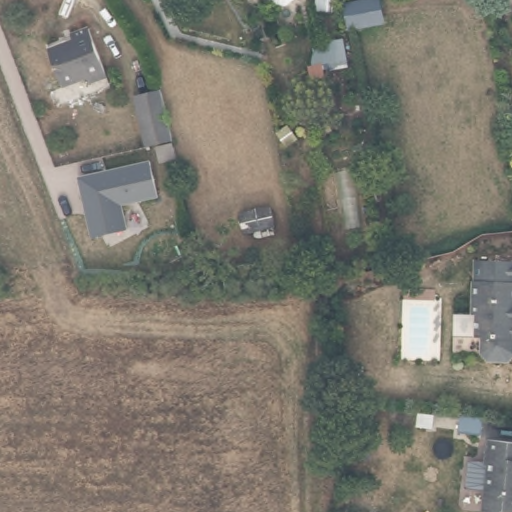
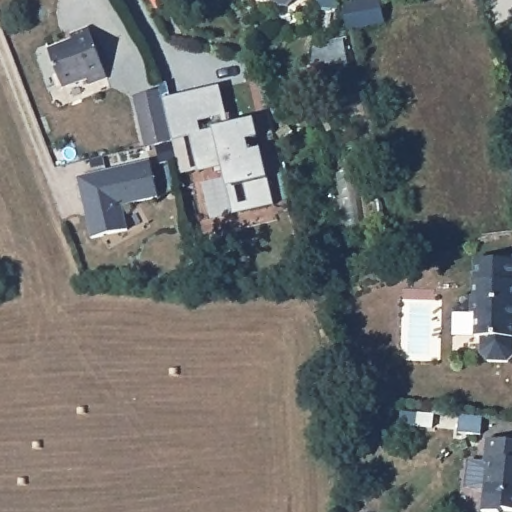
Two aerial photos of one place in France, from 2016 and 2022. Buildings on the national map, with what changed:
unchanged [(267,0),(293,0),(292,9),(267,9),(267,0)]
unchanged [(336,11),(316,10),(316,0),(337,0),(337,7),(336,11)]
unchanged [(337,7),(375,0),(381,0),(387,25),(370,28),(339,34),(336,11),(337,7)]
unchanged [(102,74),(84,81),(81,74),(58,83),(46,48),(71,40),(70,31),(86,28),(102,74)]
unchanged [(142,107),(138,87),(165,83),(168,102),(173,135),(147,140),(142,107)]
new [(219,85),(226,124),(254,119),(266,179),(264,179),(271,204),(232,214),(219,168),(178,175),(169,136),(173,135),(168,102),(167,97),(219,85)]
unchanged [(127,233),(91,235),(77,174),(152,160),(158,199),(123,203),(127,233)]
demolished [(241,208),(274,202),(277,222),(244,227),(241,208)]
unchanged [(512,279),(469,280),(469,258),(512,259),(512,279)]
unchanged [(495,358),(487,357),(483,352),(482,336),(476,336),(476,309),(470,308),(469,280),(512,279),(512,356),(507,359),(495,358)]
unchanged [(504,512),(483,511),(488,439),(512,442),(512,510),(504,509),(504,512)]

